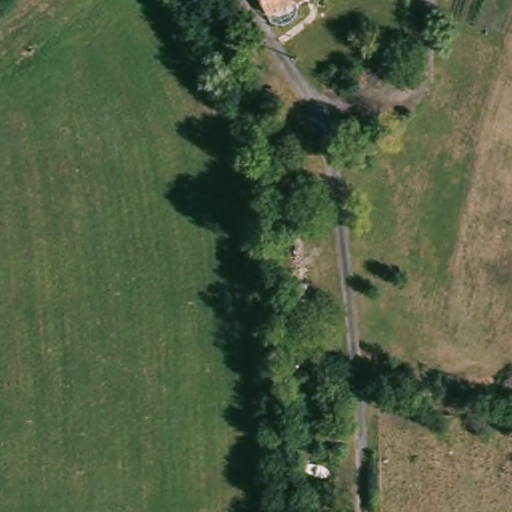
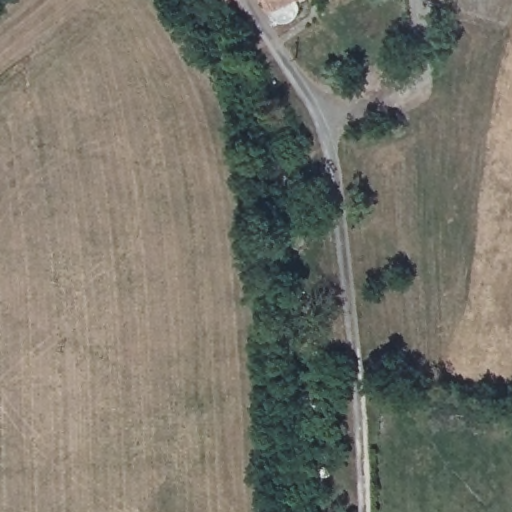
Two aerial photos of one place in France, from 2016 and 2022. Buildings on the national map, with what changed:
unchanged [(301,8),(273,23),(261,0),(297,0),(301,8)]

